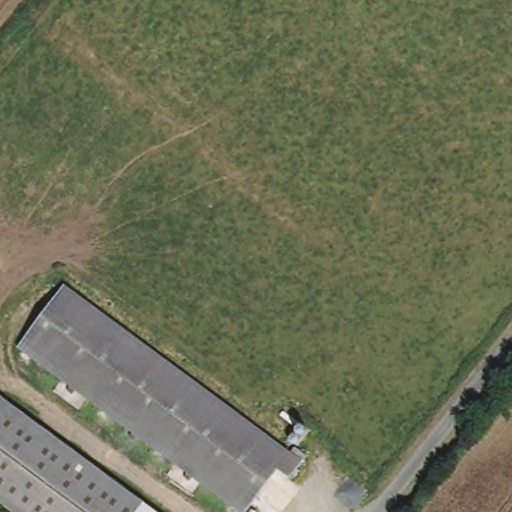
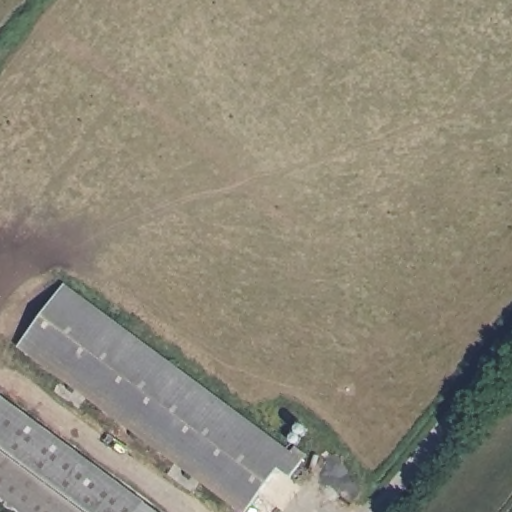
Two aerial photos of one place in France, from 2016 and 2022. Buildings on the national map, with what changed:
unchanged [(61,287),(70,294),(163,360),(291,452),(296,445),(307,454),(302,460),(290,476),(278,467),(246,507),(119,415),(27,348),(20,343),(61,287)]
unchanged [(147,497),(136,512),(24,512),(0,495),(0,391),(88,454),(147,497)]
unchanged [(142,503),(155,512),(136,512),(142,503)]

